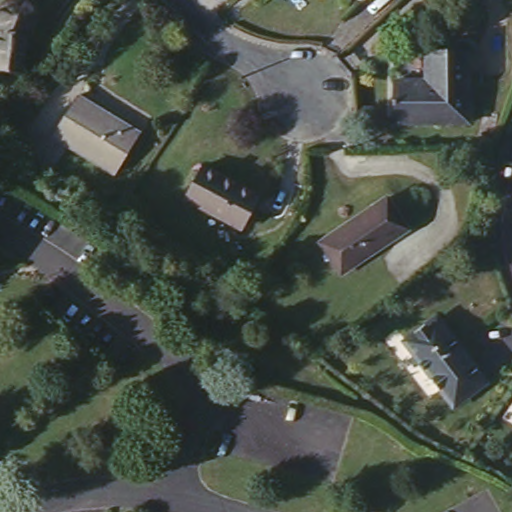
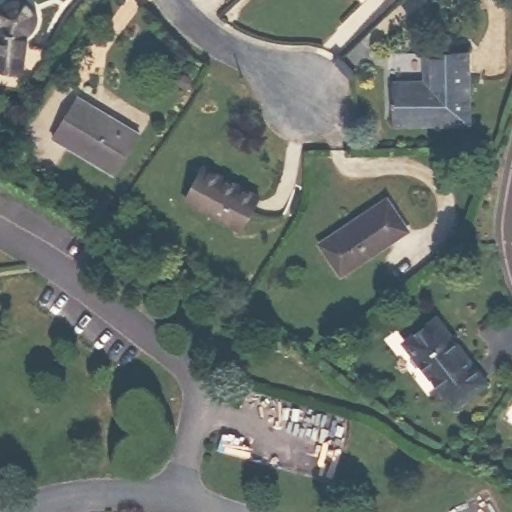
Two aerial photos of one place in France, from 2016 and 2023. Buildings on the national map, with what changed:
unchanged [(36,2),(38,9),(38,17),(35,27),(30,31),(26,72),(0,69),(0,2),(2,0),(34,0),(36,2)]
unchanged [(443,37),(478,40),(475,112),(404,109),(406,65),(407,53),(417,54),(416,65),(440,66),(443,37)]
unchanged [(105,173),(45,134),(70,95),(84,104),(94,111),(130,134),(105,173)]
unchanged [(196,160),(248,194),(228,227),(175,194),(196,160)]
unchanged [(377,200),(399,231),(339,274),(317,245),(377,200)]
unchanged [(485,378),(453,407),(403,341),(436,315),(485,378)]

